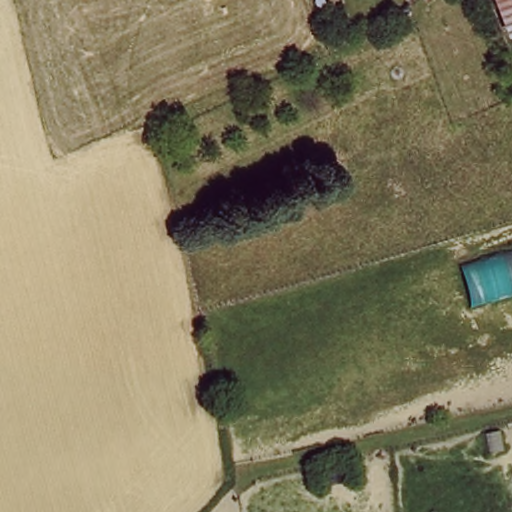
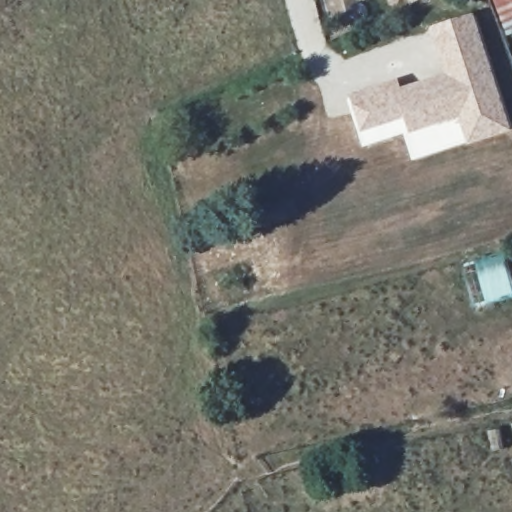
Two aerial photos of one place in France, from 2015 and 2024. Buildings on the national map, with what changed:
unchanged [(512,27),(501,0),(512,0),(512,27)]
new [(397,76),(401,86),(441,71),(426,28),(474,11),(512,128),(512,132),(467,145),(459,119),(404,134),(362,146),(346,93),(397,76)]
new [(459,119),(467,145),(411,161),(404,134),(459,119)]
unchanged [(475,310),(462,265),(512,250),(512,300),(475,310)]

